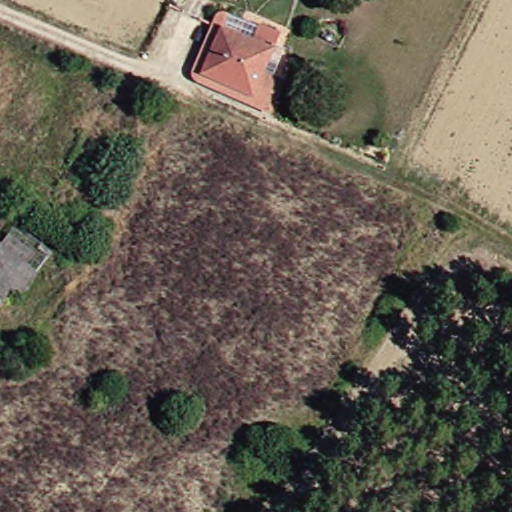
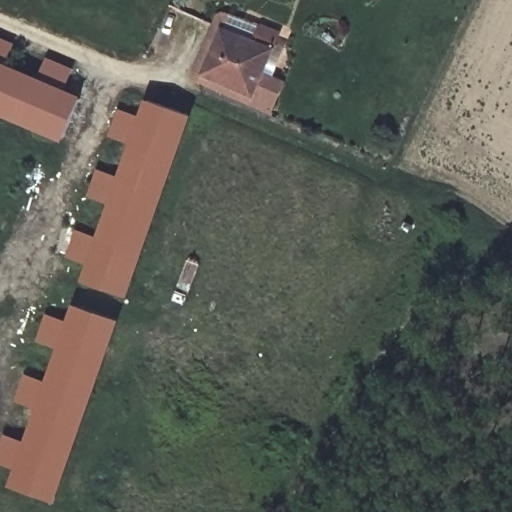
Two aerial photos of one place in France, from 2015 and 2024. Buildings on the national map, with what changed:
unchanged [(191,80),(211,32),(263,54),(243,101),(191,80)]
new [(3,68),(36,82),(46,60),(71,70),(62,94),(79,100),(61,142),(0,116),(0,40),(13,45),(3,68)]
new [(75,231),(99,240),(111,205),(87,197),(96,171),(120,180),(132,145),(109,137),(118,111),(141,120),(147,101),(188,116),(124,298),(84,283),(90,266),(65,257),(75,231)]
demolished [(0,307),(0,235),(34,260),(0,307)]
new [(25,446),(39,410),(14,401),(24,376),(48,385),(60,350),(36,341),(45,316),(69,324),(74,306),(114,321),(50,502),(10,488),(16,470),(0,464),(0,446),(3,437),(25,446)]
unchanged [(297,448),(285,461),(272,450),(284,437),(297,448)]

